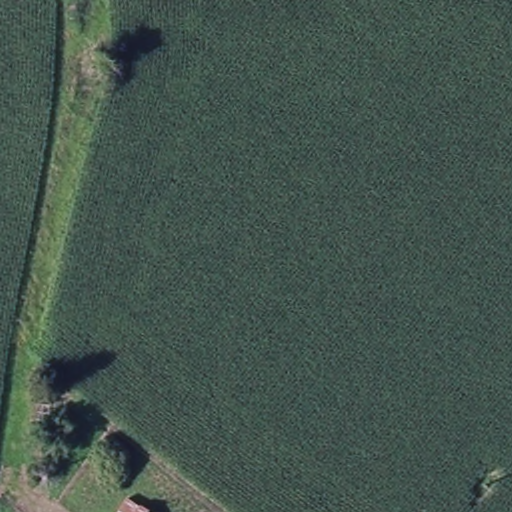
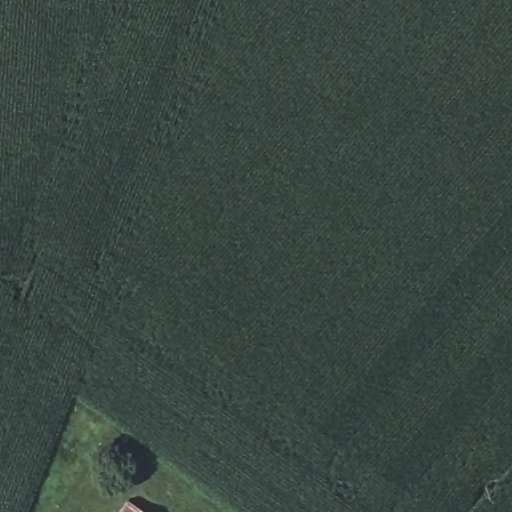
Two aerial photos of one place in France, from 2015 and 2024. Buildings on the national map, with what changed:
unchanged [(139,501),(156,512),(134,512),(139,501)]

